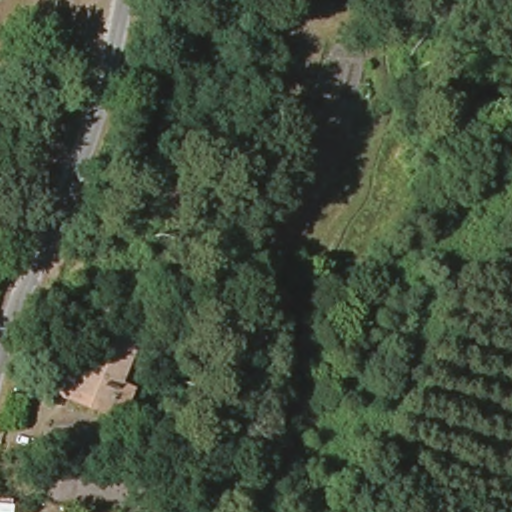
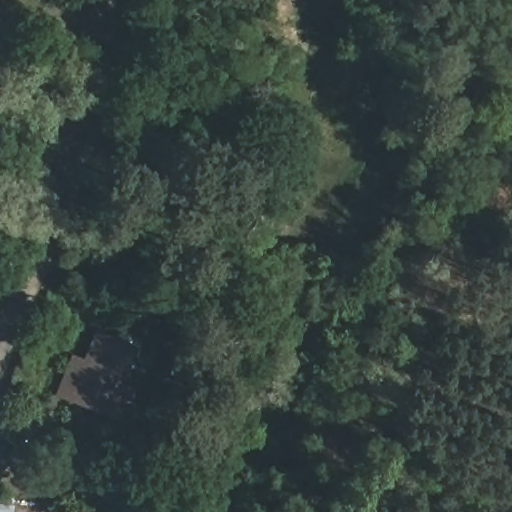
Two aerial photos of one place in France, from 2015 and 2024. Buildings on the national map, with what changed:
unchanged [(72,356),(83,361),(94,332),(135,348),(120,385),(134,390),(122,421),(107,416),(56,397),(72,356)]

